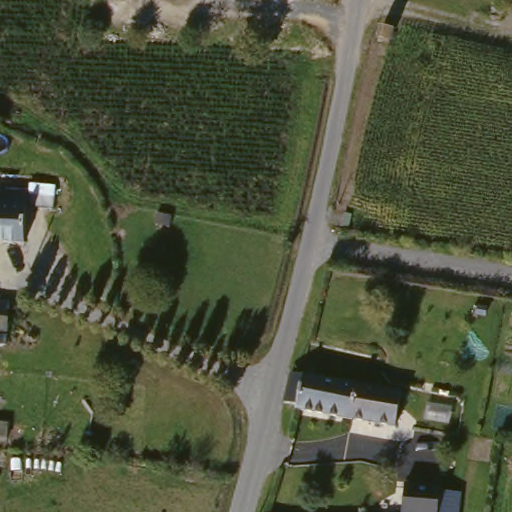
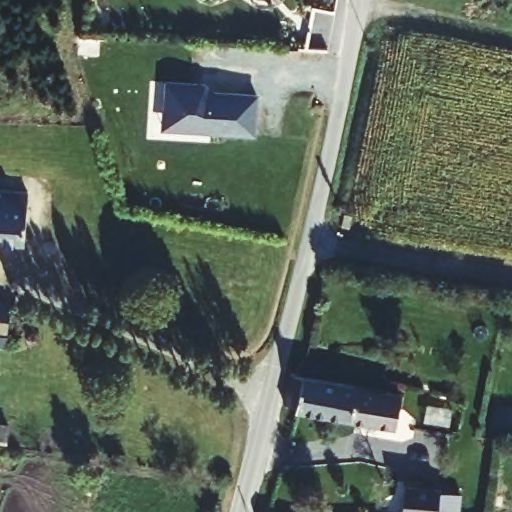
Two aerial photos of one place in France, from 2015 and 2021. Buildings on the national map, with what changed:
new [(167,83),(206,87),(213,95),(257,99),(253,137),(210,134),(162,129),(165,100),(167,83)]
unchanged [(36,197),(33,247),(0,246),(0,196),(36,197)]
unchanged [(15,301),(14,331),(0,330),(0,299),(12,300),(15,301)]
unchanged [(308,372),(323,376),(377,383),(368,421),(314,410),(314,404),(302,405),(302,403),(308,372)]
unchanged [(399,387),(396,407),(407,410),(407,426),(368,421),(377,383),(399,387)]
unchanged [(14,427),(13,442),(0,440),(0,426),(14,427)]
unchanged [(458,512),(398,512),(402,483),(439,488),(439,491),(461,495),(458,512)]

